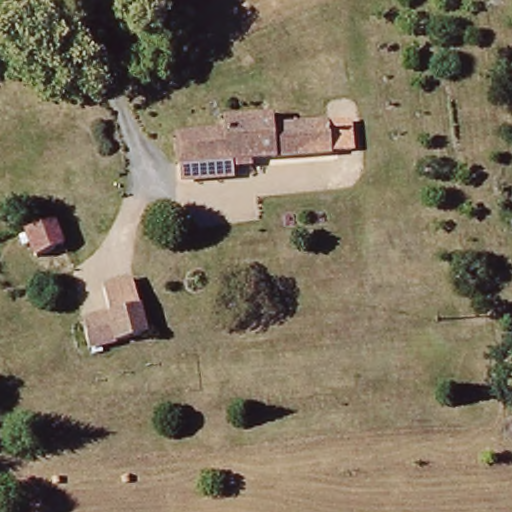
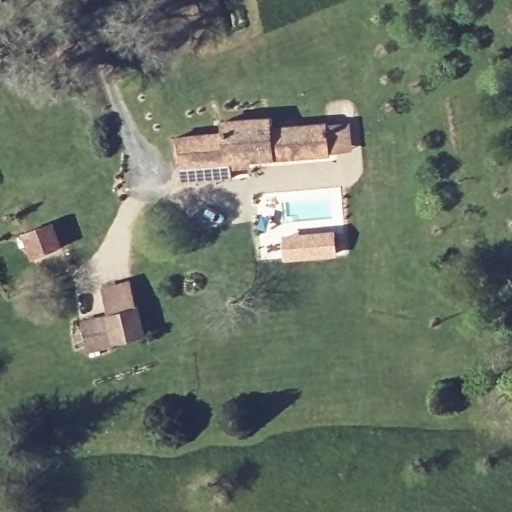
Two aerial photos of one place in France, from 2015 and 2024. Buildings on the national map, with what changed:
unchanged [(331,158),(184,164),(183,137),(232,135),(232,122),(280,119),(280,124),(330,122),(331,158)]
unchanged [(22,229),(52,219),(62,245),(30,253),(22,229)]
new [(283,236),(335,231),(337,256),(285,261),(283,236)]
unchanged [(107,315),(114,313),(107,284),(137,278),(143,305),(144,307),(151,333),(115,343),(94,349),(86,322),(107,315)]

